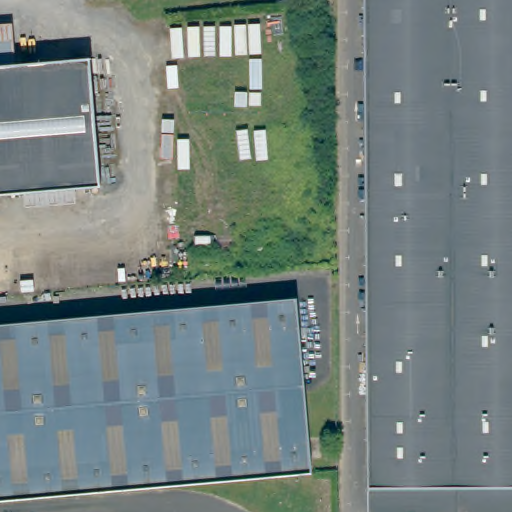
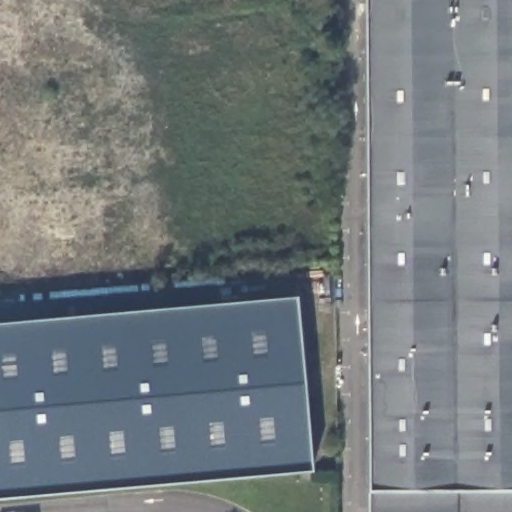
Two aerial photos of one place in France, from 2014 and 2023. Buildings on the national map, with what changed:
unchanged [(372,512),(369,0),(512,0),(512,512),(372,512)]
demolished [(10,60),(84,54),(94,183),(69,186),(18,190),(0,191),(0,20),(6,20),(10,60)]
unchanged [(0,497),(0,322),(293,295),(310,469),(266,473),(0,497)]

